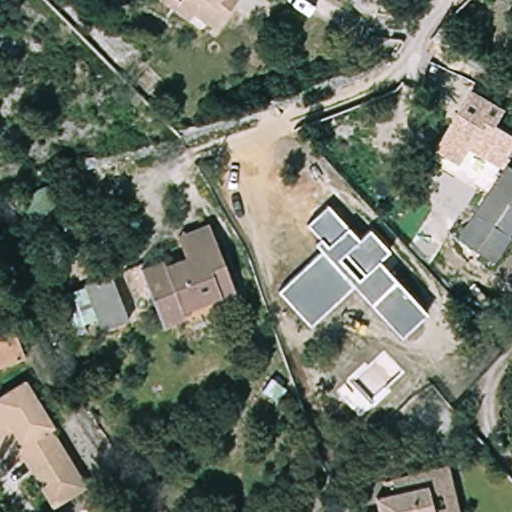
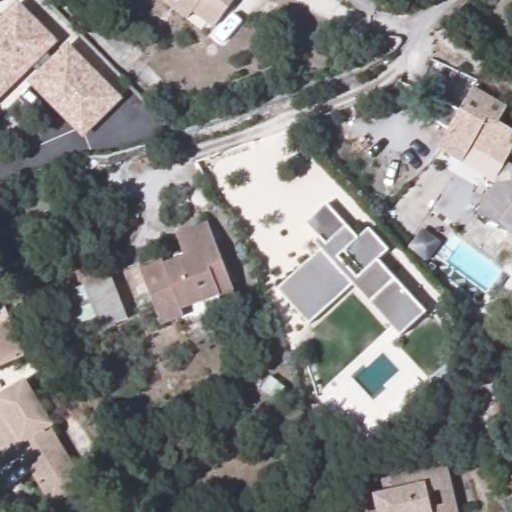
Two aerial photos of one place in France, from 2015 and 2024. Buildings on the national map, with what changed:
unchanged [(189,17),(168,0),(235,0),(217,25),(195,9),(189,17)]
new [(122,99),(81,140),(28,84),(38,74),(32,67),(0,99),(0,17),(16,1),(57,41),(47,52),(52,58),(68,44),(122,99)]
unchanged [(438,152),(447,137),(475,91),(508,111),(501,123),(512,130),(512,154),(505,165),(475,147),(472,151),(462,167),(438,152)]
unchanged [(499,267),(462,242),(512,167),(512,247),(499,267)]
unchanged [(349,228),(357,239),(369,230),(388,251),(377,261),(427,311),(400,336),(353,283),(309,322),(278,290),(322,249),(315,242),(320,237),(307,224),(327,207),(349,228)]
unchanged [(224,304),(222,295),(182,311),(184,317),(162,325),(140,266),(160,257),(162,262),(182,253),(175,235),(208,222),(214,235),(227,267),(240,298),(224,304)]
unchanged [(98,316),(73,325),(71,317),(65,321),(56,297),(85,284),(85,282),(111,271),(130,318),(103,328),(98,316)]
unchanged [(0,346),(0,319),(12,314),(28,354),(7,363),(0,366),(0,346)]
unchanged [(54,506),(44,490),(22,457),(9,466),(0,452),(0,394),(27,376),(57,422),(53,425),(80,467),(90,482),(54,506)]
unchanged [(375,483),(393,480),(392,475),(450,460),(461,512),(369,512),(382,508),(375,483)]

